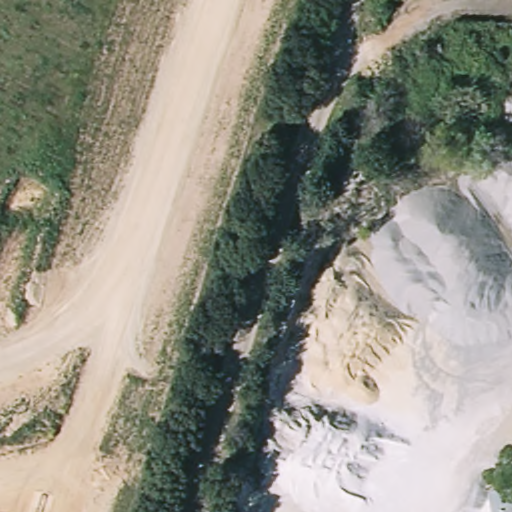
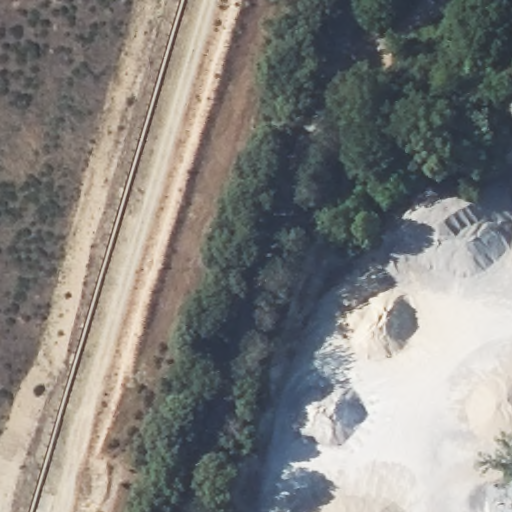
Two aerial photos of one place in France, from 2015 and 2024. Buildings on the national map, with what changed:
unchanged [(512,489),(512,512),(498,512),(496,493),(512,489)]

